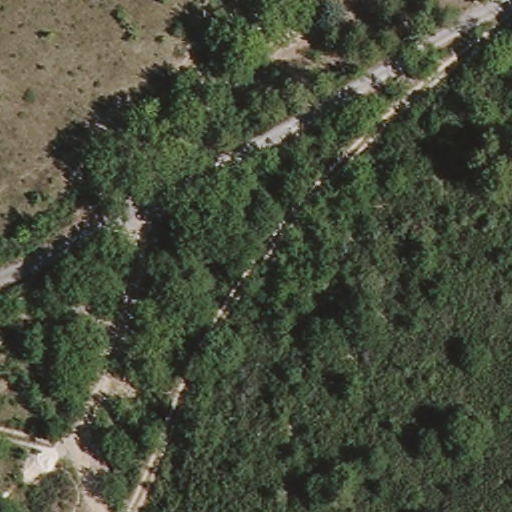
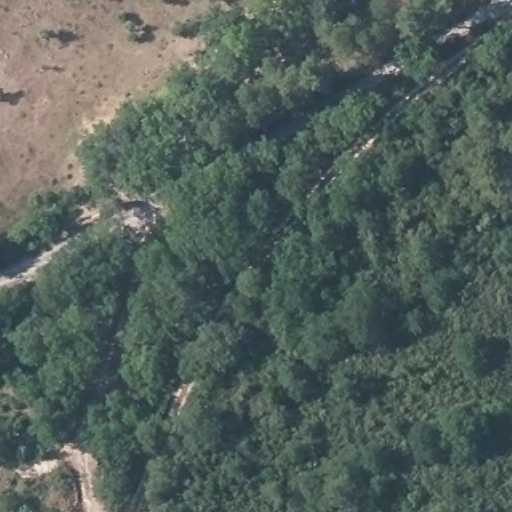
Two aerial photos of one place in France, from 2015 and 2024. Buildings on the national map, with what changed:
unchanged [(286,10),(295,0),(332,0),(307,26),(286,10)]

